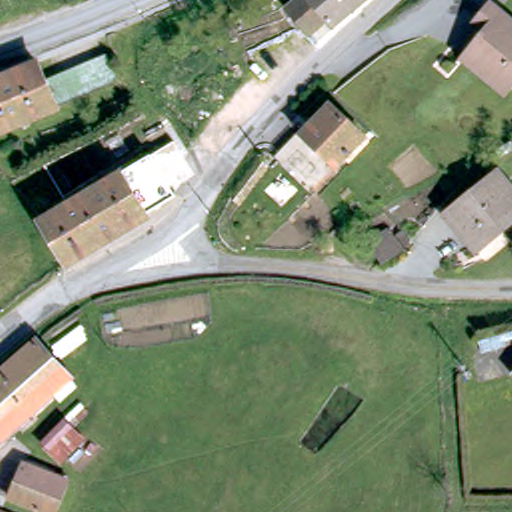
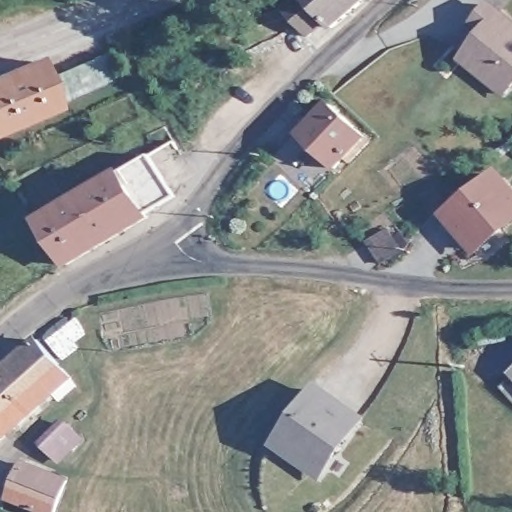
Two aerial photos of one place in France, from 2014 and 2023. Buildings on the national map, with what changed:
unchanged [(293,12),(306,0),(369,0),(335,30),(320,43),(293,12)]
unchanged [(512,24),(512,92),(510,96),(468,63),(489,34),(477,25),(490,7),(512,24)]
unchanged [(42,87),(106,65),(117,93),(0,135),(0,86),(37,74),(42,87)]
unchanged [(377,126),(349,160),(348,159),(332,177),(325,185),(302,165),(292,155),(295,152),(313,131),(315,130),(343,97),(377,126)]
unchanged [(176,197),(146,215),(147,220),(66,266),(42,222),(152,159),(176,197)]
unchanged [(453,217),(502,177),(512,190),(512,226),(505,232),(512,240),(487,260),(453,217)]
unchanged [(374,236),(383,251),(367,262),(357,246),(374,236)]
unchanged [(73,382),(0,448),(0,383),(40,345),(73,382)]
new [(319,382),(367,418),(321,482),(271,446),(319,382)]
unchanged [(58,460),(45,446),(71,423),(83,435),(58,460)]
unchanged [(37,512),(13,502),(27,466),(68,486),(58,512),(37,512)]

